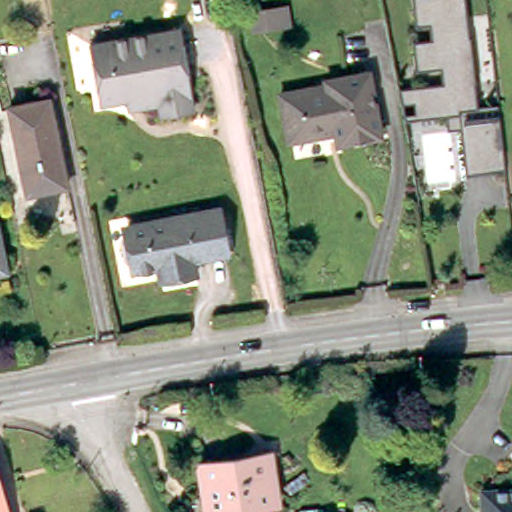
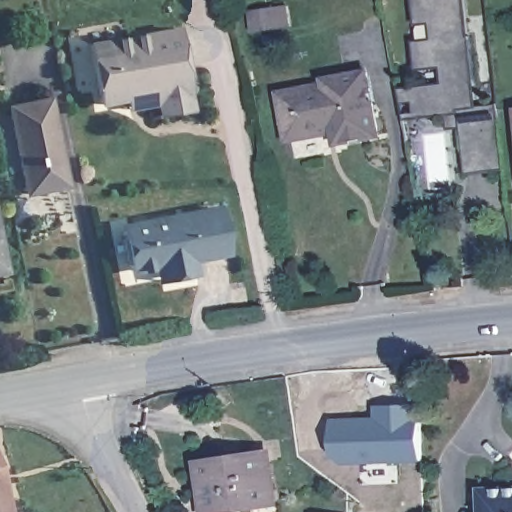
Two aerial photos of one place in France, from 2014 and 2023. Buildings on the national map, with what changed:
unchanged [(494,171),(494,166),(468,169),(462,125),(452,126),(450,111),(422,114),(405,116),(402,90),(420,88),(447,85),(445,66),(425,69),(419,69),(415,43),(422,43),(436,41),(434,22),(423,24),(417,24),(414,0),(464,0),(469,37),(472,37),(478,82),(481,106),(489,105),(499,104),(501,118),(506,165),(507,169),(507,170),(494,171)]
unchanged [(126,97),(100,101),(91,41),(180,28),(192,109),(160,114),(159,103),(137,106),(127,107),(126,97)]
unchanged [(250,44),(265,41),(269,65),(254,67),(250,44)]
unchanged [(290,140),(281,95),(327,86),(327,81),(368,73),(380,135),(338,143),(336,132),(329,133),(290,140)]
unchanged [(61,187),(27,195),(9,108),(50,99),(61,155),(67,186),(61,187)]
unchanged [(159,262),(139,267),(130,261),(124,228),(130,222),(220,204),(227,248),(195,255),(198,269),(175,274),(161,277),(159,262)]
unchanged [(5,265),(0,266),(0,241),(5,265)]
new [(377,408),(401,407),(422,406),(423,461),(342,464),(335,457),(334,421),(378,420),(377,408)]
unchanged [(207,512),(200,464),(260,455),(269,454),(270,460),(276,503),(211,512),(207,512)]
unchanged [(512,489),(512,512),(487,512),(487,490),(512,489)]
unchanged [(6,512),(0,512),(0,492),(6,512)]

